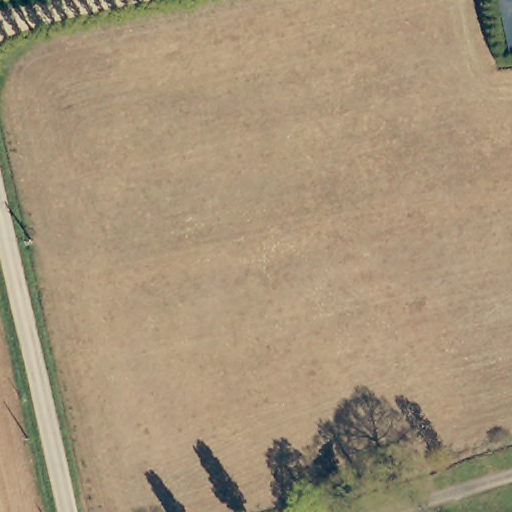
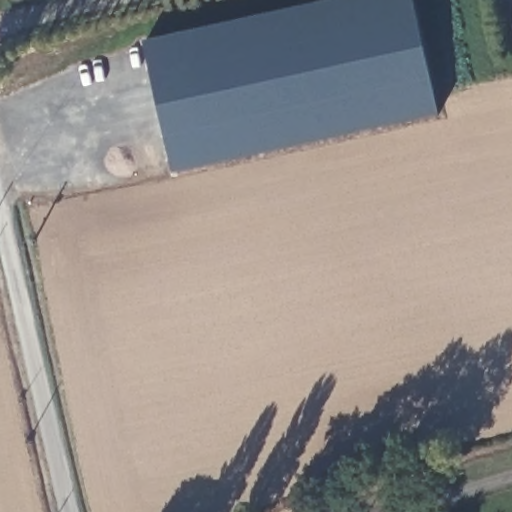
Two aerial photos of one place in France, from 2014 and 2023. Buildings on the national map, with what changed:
new [(413,0),(438,111),(177,171),(147,41),(326,0),(413,0)]
unchanged [(499,0),(512,0),(512,52),(510,52),(499,0)]

